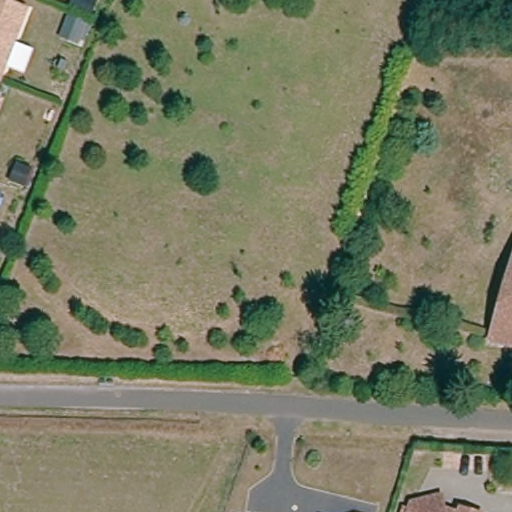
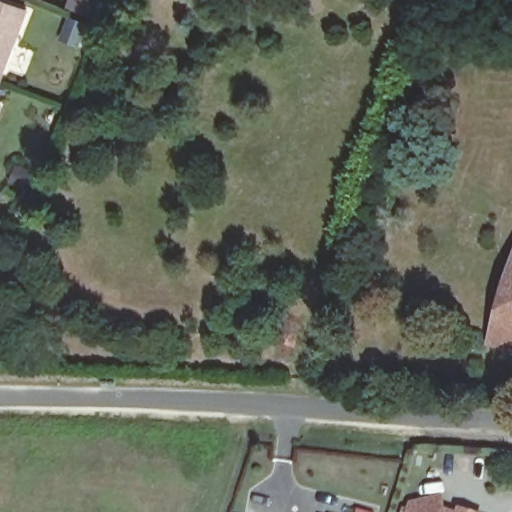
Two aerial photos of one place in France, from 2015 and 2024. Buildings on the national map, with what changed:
unchanged [(84,24),(62,16),(67,2),(90,10),(84,24)]
unchanged [(32,18),(4,91),(0,89),(0,5),(32,18)]
unchanged [(78,49),(74,48),(56,41),(62,24),(80,30),(85,32),(78,49)]
unchanged [(8,194),(16,176),(31,183),(24,201),(8,194)]
unchanged [(512,288),(512,344),(496,339),(512,288)]
unchanged [(442,501),(445,512),(410,512),(412,506),(442,501)]

